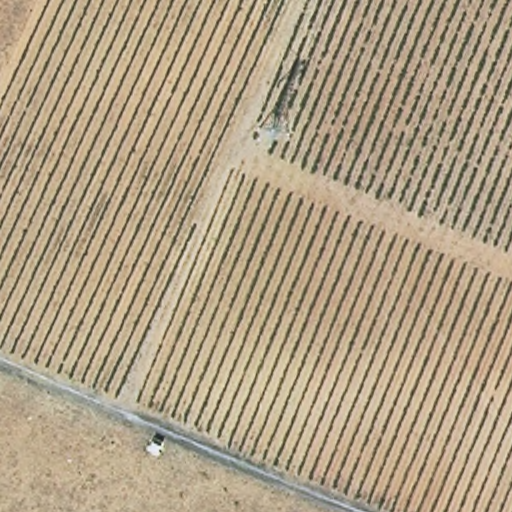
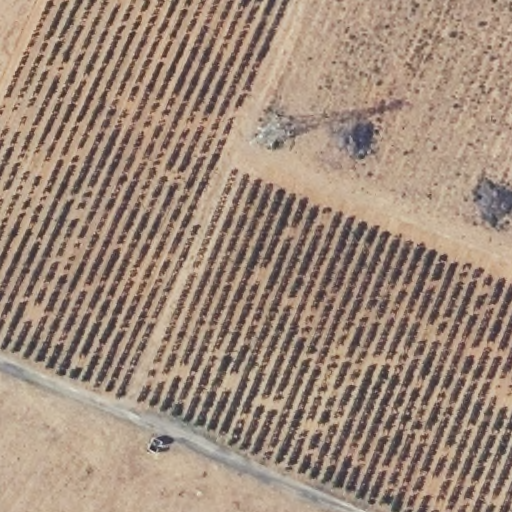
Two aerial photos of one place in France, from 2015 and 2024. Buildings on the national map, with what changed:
unchanged [(162,438),(157,452),(149,446),(152,436),(162,438)]

